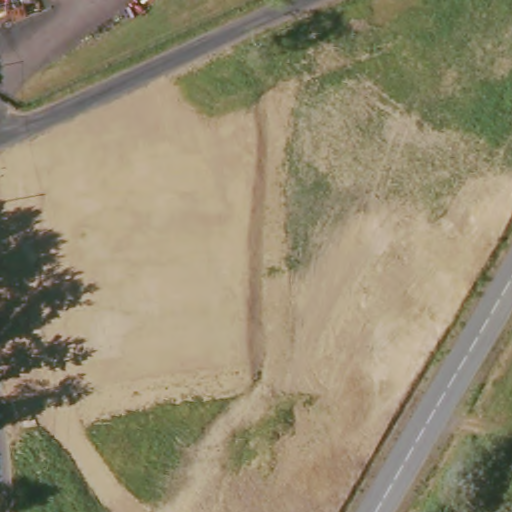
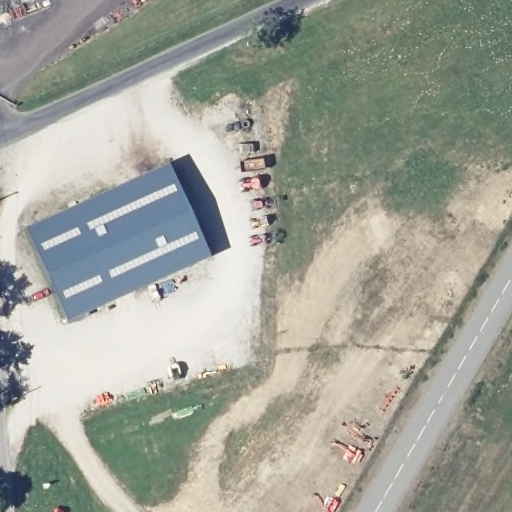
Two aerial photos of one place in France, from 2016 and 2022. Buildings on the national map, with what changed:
new [(22,229),(165,165),(207,259),(65,324),(22,229)]

